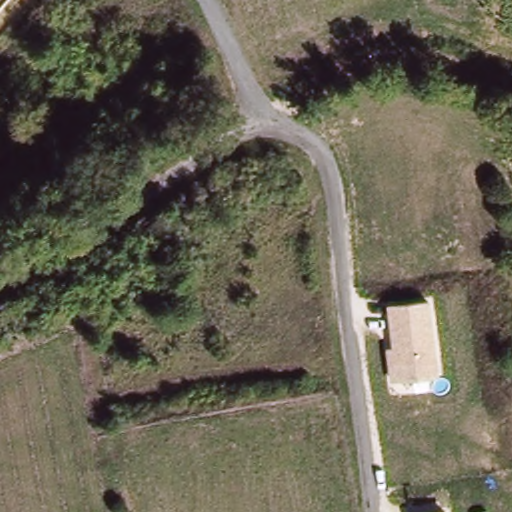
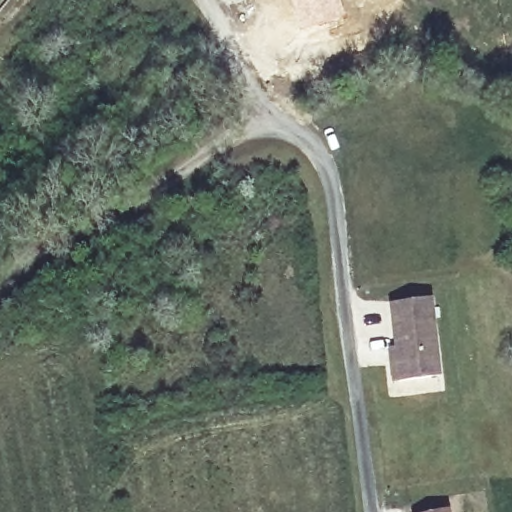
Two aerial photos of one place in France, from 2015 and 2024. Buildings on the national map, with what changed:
new [(343,15),(299,27),(290,0),(338,0),(343,15)]
unchanged [(439,376),(391,382),(387,351),(393,350),(389,307),(430,301),(439,376)]
unchanged [(439,512),(447,511),(448,512),(439,512)]

